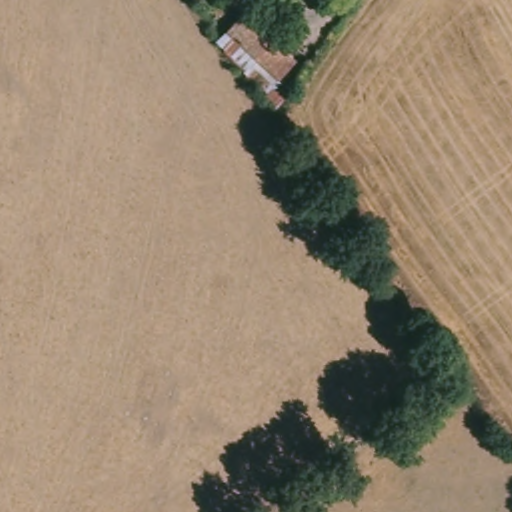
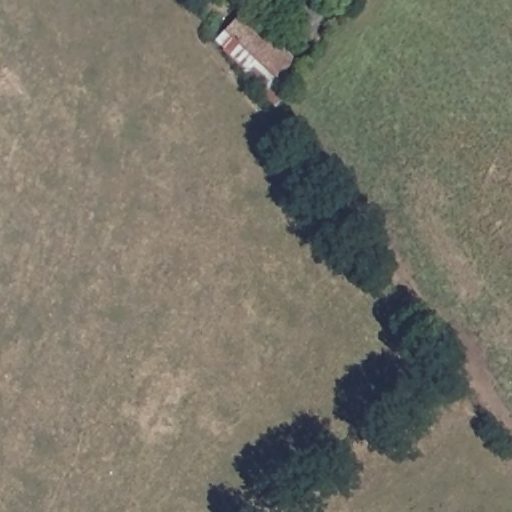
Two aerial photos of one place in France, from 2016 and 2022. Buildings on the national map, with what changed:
unchanged [(272,87),(259,72),(252,64),(226,33),(246,15),(272,46),(278,54),(292,70),(272,87)]

